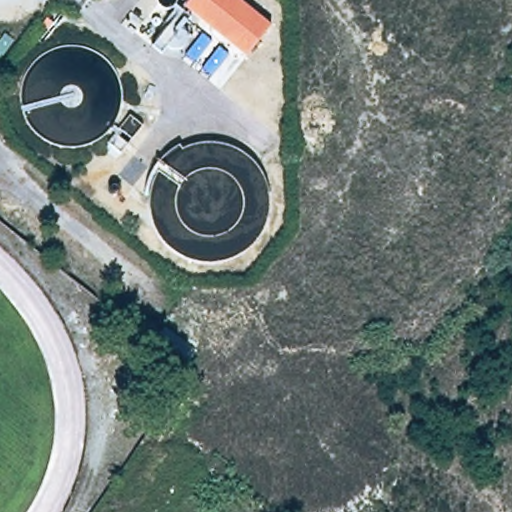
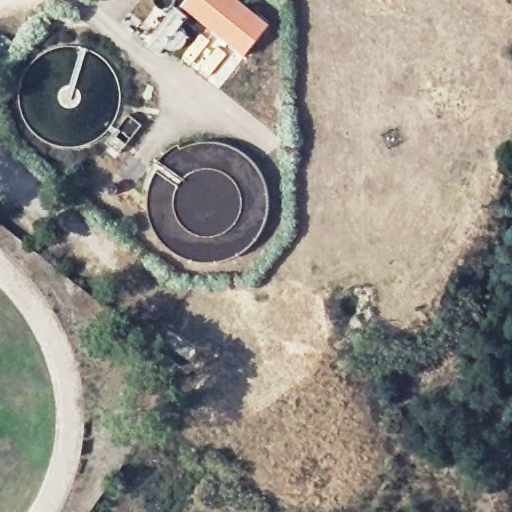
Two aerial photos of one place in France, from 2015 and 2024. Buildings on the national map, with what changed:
unchanged [(231,0),(265,28),(243,60),(177,11),(187,0),(231,0)]

